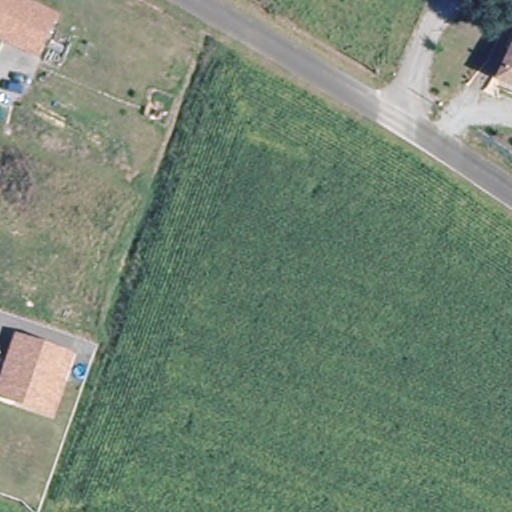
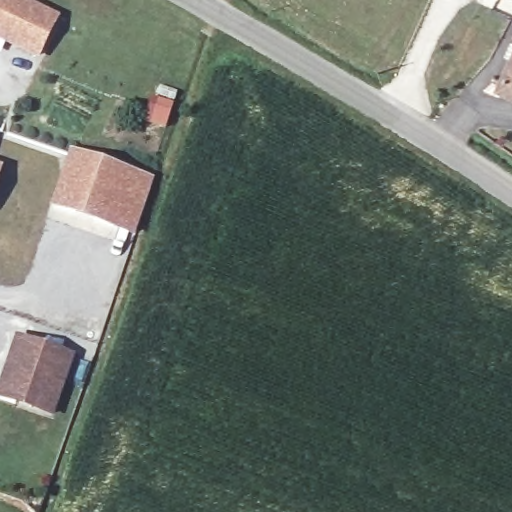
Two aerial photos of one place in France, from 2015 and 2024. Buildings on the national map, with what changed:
unchanged [(0,36),(0,0),(24,0),(61,17),(44,56),(0,36)]
unchanged [(512,34),(512,98),(495,86),(487,81),(512,34)]
new [(153,178),(135,237),(51,210),(70,150),(153,178)]
new [(0,175),(0,165),(3,165),(0,175)]
unchanged [(54,421),(0,402),(0,376),(16,334),(75,355),(54,421)]

